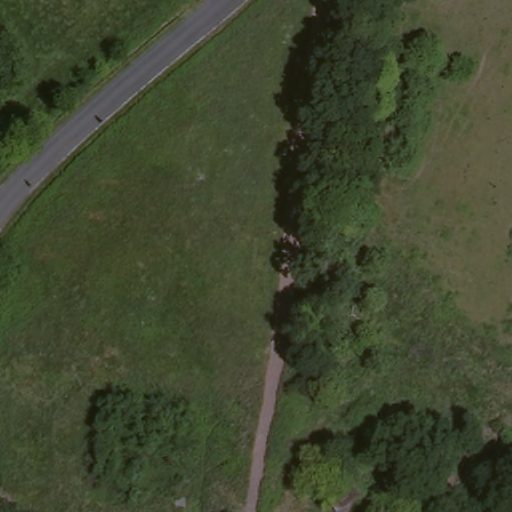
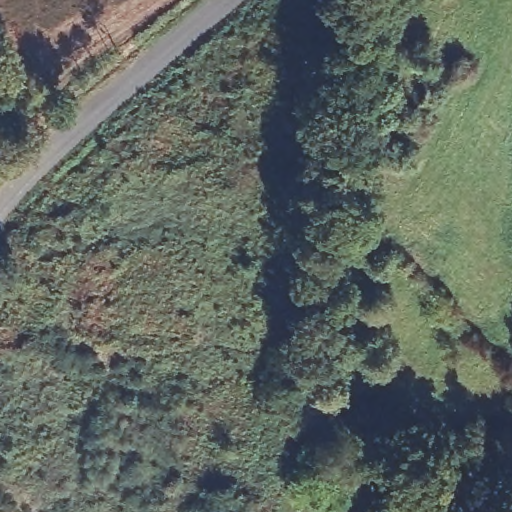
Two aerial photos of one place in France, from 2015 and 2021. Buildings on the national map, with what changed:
unchanged [(368,497),(339,506),(337,500),(329,476),(359,467),(363,483),(368,497)]

